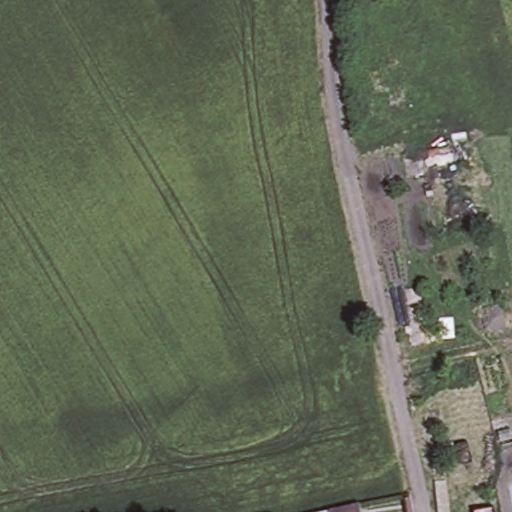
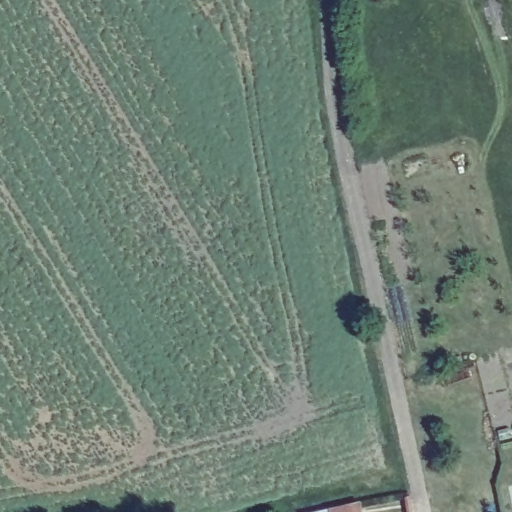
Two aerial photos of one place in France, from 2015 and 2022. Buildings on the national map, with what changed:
unchanged [(327,508),(360,501),(361,512),(313,512),(327,508)]

